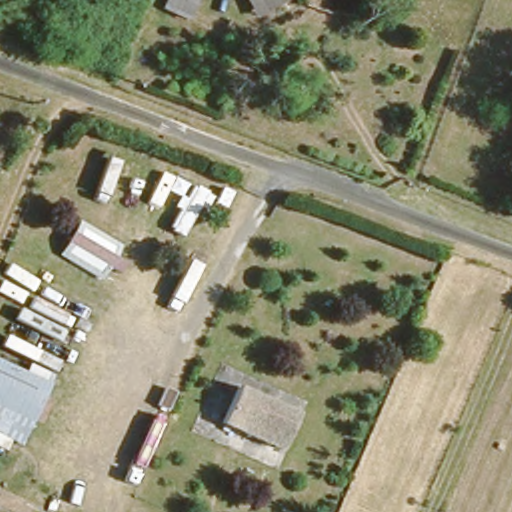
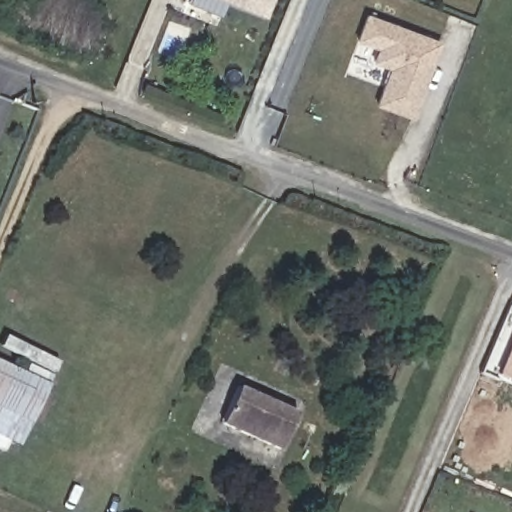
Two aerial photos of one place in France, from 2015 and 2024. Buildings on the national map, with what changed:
demolished [(201,0),(191,20),(161,9),(165,0),(201,0)]
new [(221,0),(273,0),(266,18),(221,0)]
demolished [(251,0),(284,0),(259,14),(251,0)]
new [(412,119),(375,105),(387,69),(371,64),(375,49),(355,42),(365,13),(441,41),(412,119)]
new [(512,340),(512,382),(497,376),(512,340)]
unchanged [(0,357),(50,380),(31,420),(0,405),(0,357)]
unchanged [(298,407),(280,456),(220,434),(238,385),(298,407)]
unchanged [(8,439),(3,451),(0,449),(0,405),(31,420),(18,444),(8,439)]

